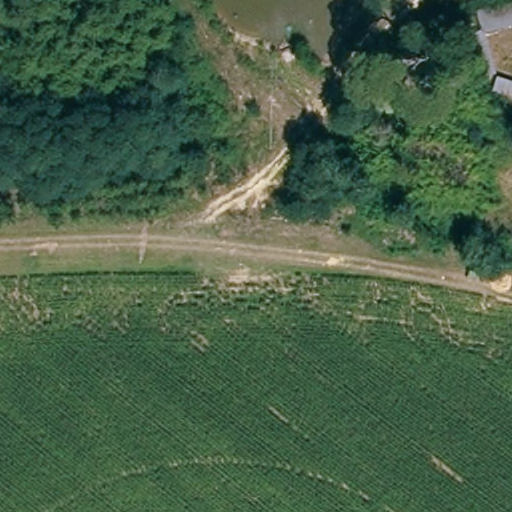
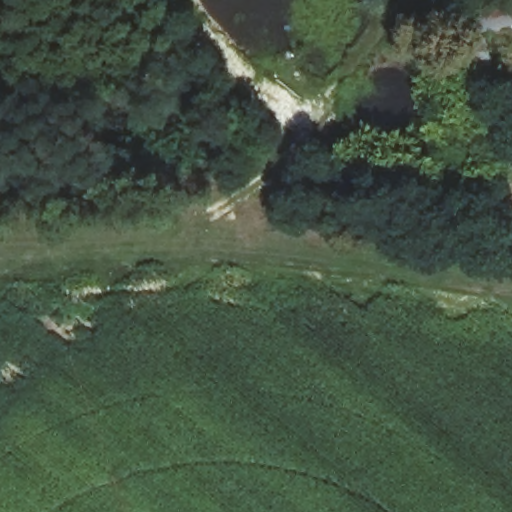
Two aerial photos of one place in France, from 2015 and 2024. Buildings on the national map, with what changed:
unchanged [(481,32),(475,10),(512,1),(512,26),(481,32)]

